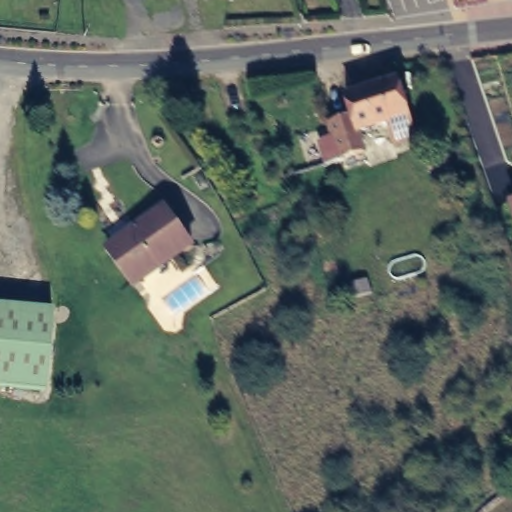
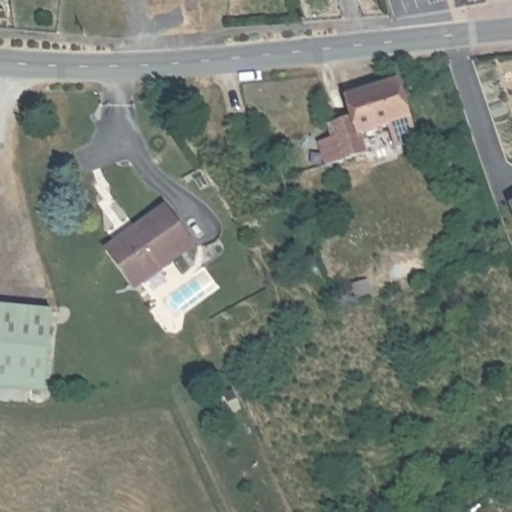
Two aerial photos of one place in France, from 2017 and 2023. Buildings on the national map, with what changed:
unchanged [(143,1),(143,0),(148,0),(143,1)]
unchanged [(322,140),(336,136),(333,125),(356,119),(350,97),(401,81),(418,137),(397,143),(391,125),(361,134),(366,152),(344,158),(329,161),(322,140)]
unchanged [(446,153),(454,178),(437,184),(428,159),(446,153)]
unchanged [(164,203),(191,240),(134,280),(107,243),(164,203)]
unchanged [(45,393),(0,390),(0,309),(53,313),(45,393)]

